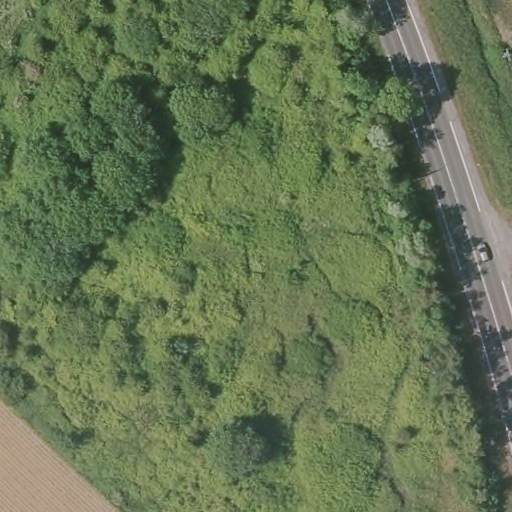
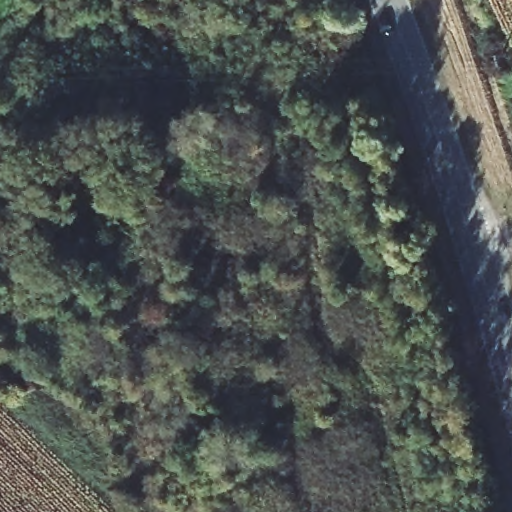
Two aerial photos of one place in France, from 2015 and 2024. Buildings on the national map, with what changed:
[]

